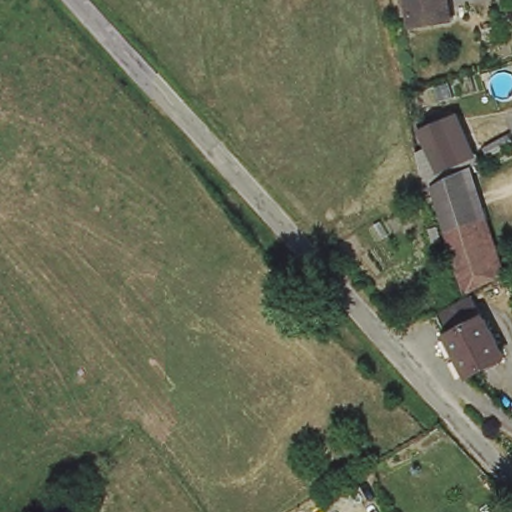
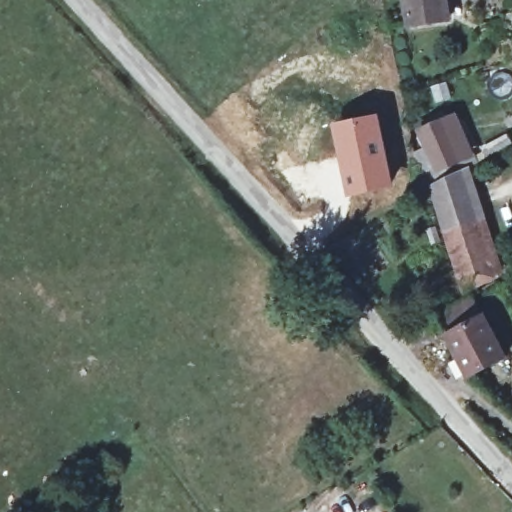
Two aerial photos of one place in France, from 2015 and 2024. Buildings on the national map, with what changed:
unchanged [(410,30),(406,0),(443,0),(446,25),(410,30)]
new [(380,114),(395,187),(346,199),(331,122),(380,114)]
unchanged [(462,163),(445,171),(427,135),(445,126),(462,163)]
unchanged [(499,149),(495,141),(508,134),(512,141),(512,143),(499,149)]
unchanged [(452,238),(440,190),(439,184),(468,170),(482,225),(452,238)]
unchanged [(496,285),(472,297),(466,300),(452,238),(482,225),(496,285)]
unchanged [(436,315),(463,301),(466,300),(472,297),(485,321),(450,341),(436,315)]
unchanged [(505,360),(470,380),(450,341),(485,321),(505,360)]

